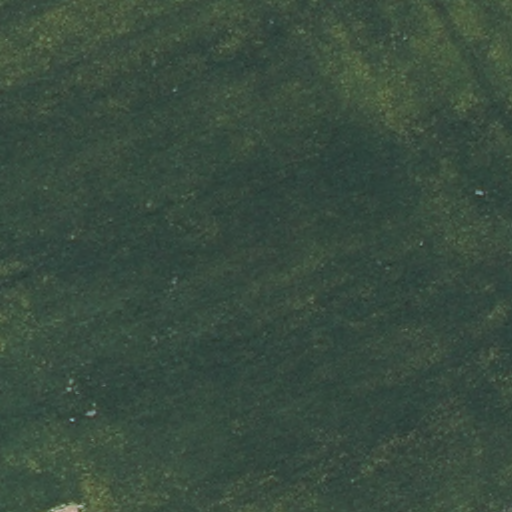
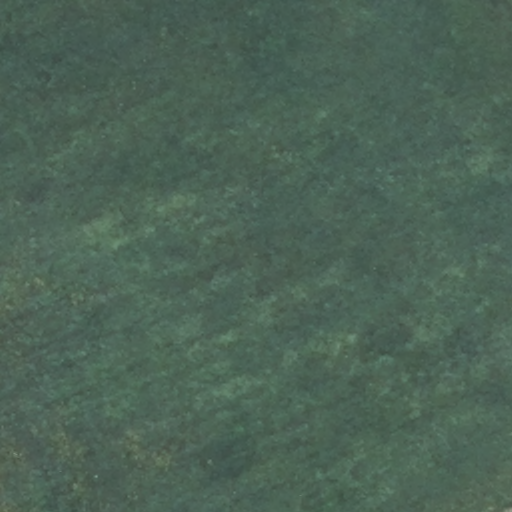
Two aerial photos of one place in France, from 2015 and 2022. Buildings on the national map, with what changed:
[]

